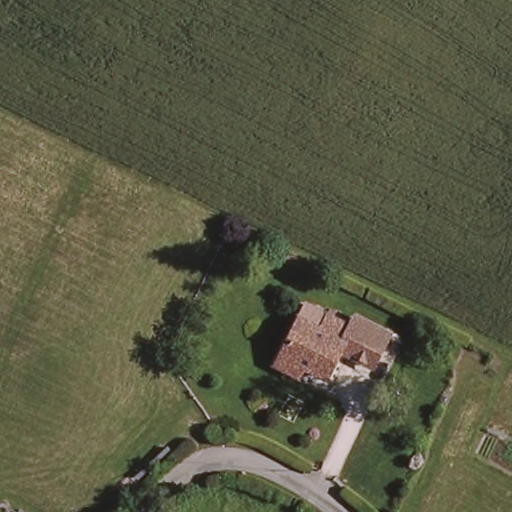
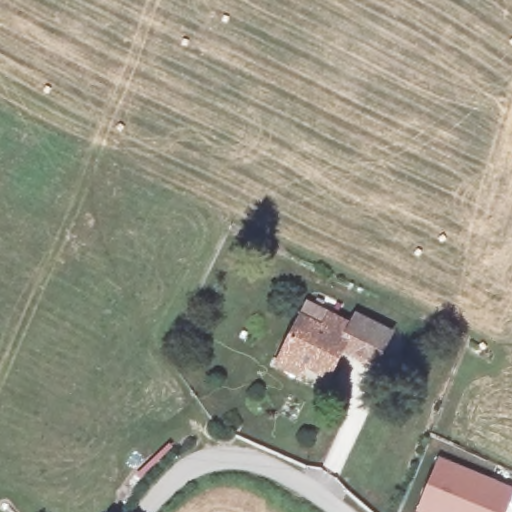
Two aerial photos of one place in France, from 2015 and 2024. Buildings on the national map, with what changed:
unchanged [(286,373),(281,370),(286,361),(305,323),(314,328),(324,333),(329,325),(352,335),(358,324),(389,337),(374,368),(344,355),(330,383),(309,372),(304,382),(286,373)]
new [(505,512),(417,512),(439,457),(512,488),(512,494),(505,512)]

